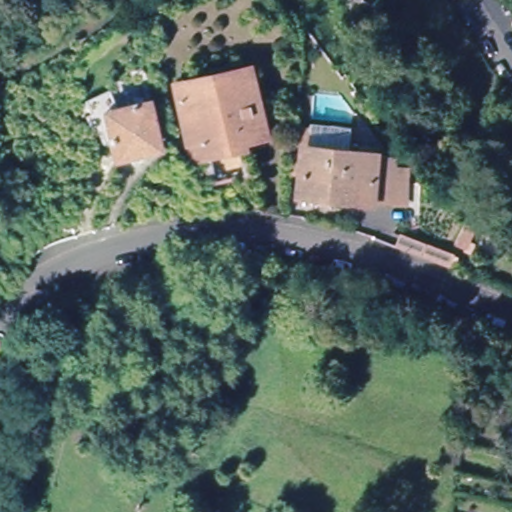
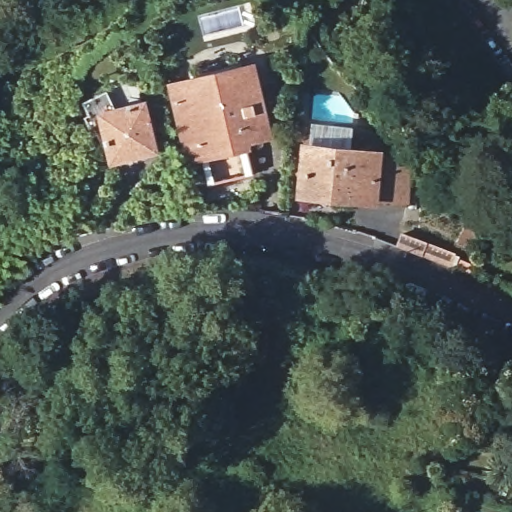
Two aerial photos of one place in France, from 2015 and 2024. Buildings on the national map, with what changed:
unchanged [(200,156),(190,159),(172,87),(250,68),(266,132),(242,139),(244,145),(200,156)]
unchanged [(111,158),(101,113),(143,104),(147,121),(155,119),(157,129),(149,130),(154,149),(111,158)]
unchanged [(404,178),(400,214),(390,213),(382,212),(313,205),(315,186),(299,184),(302,140),(320,142),(317,160),(386,166),(386,177),(392,177),(404,178)]
unchanged [(459,250),(453,268),(400,246),(405,229),(459,250)]

